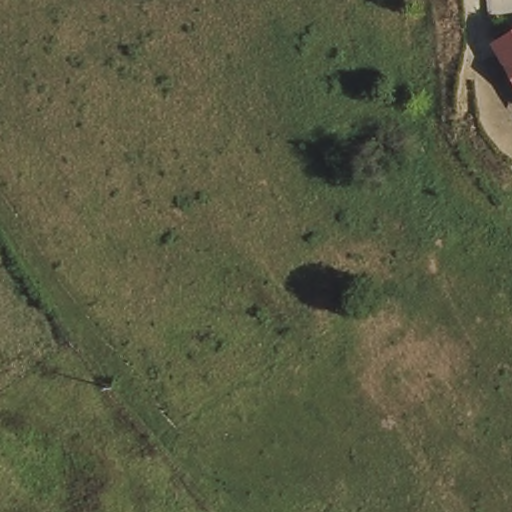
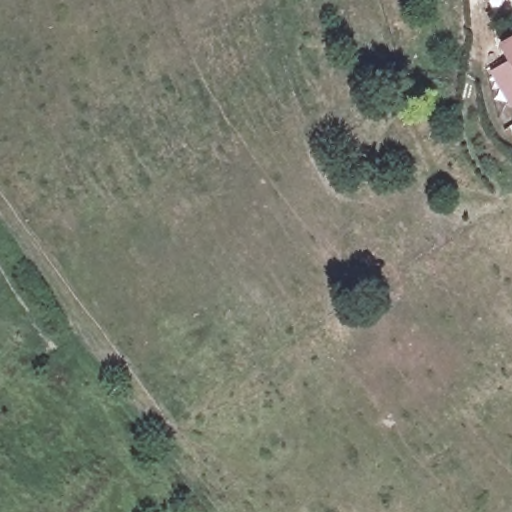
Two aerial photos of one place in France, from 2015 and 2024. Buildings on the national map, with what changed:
unchanged [(494,40),(512,29),(512,69),(494,40)]

